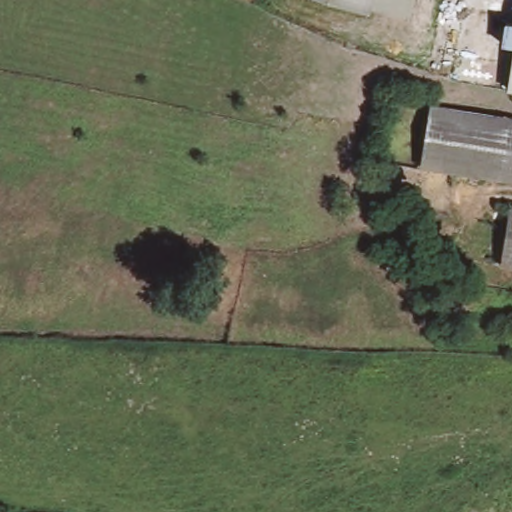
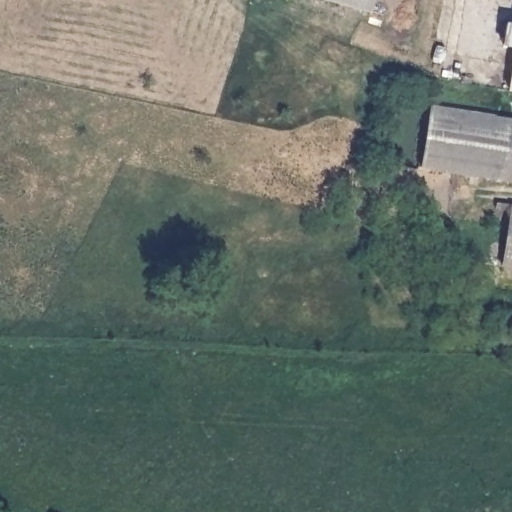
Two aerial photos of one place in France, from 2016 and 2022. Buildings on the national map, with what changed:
unchanged [(373,12),(335,0),(377,0),(373,12)]
unchanged [(509,45),(512,30),(512,45),(509,45)]
unchanged [(424,165),(434,105),(488,113),(512,117),(512,179),(476,173),(424,165)]
unchanged [(512,202),(512,265),(499,263),(512,202)]

